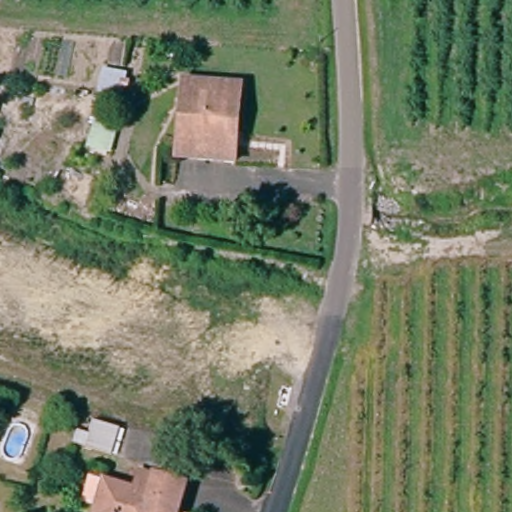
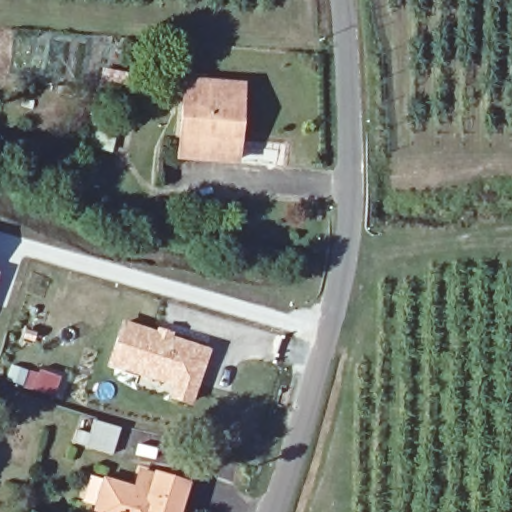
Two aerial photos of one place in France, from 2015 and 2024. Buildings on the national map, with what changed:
unchanged [(105,70),(132,74),(115,152),(88,146),(105,70)]
unchanged [(180,155),(188,80),(236,85),(245,86),(238,140),(235,164),(180,155)]
new [(110,362),(123,322),(206,350),(189,401),(171,395),(176,383),(140,371),(110,362)]
new [(10,363),(61,377),(53,398),(4,380),(10,363)]
unchanged [(119,454),(79,445),(82,431),(95,434),(98,420),(126,428),(119,454)]
unchanged [(100,512),(103,504),(91,499),(100,475),(139,490),(142,480),(147,468),(162,472),(192,482),(183,512),(100,512)]

